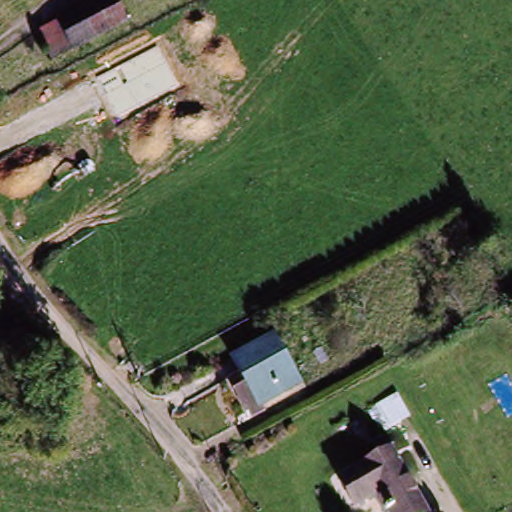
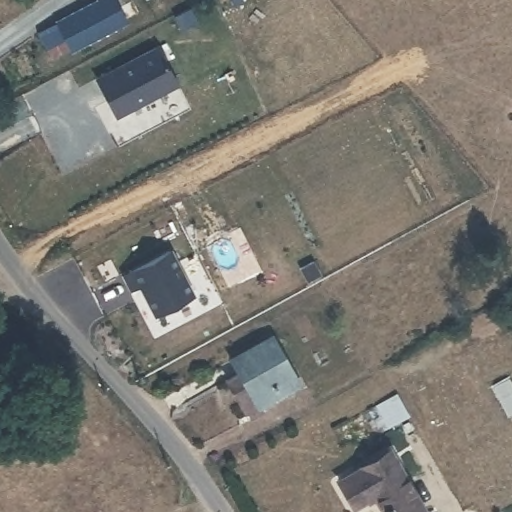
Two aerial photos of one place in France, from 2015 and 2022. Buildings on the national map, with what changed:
unchanged [(30,34),(53,24),(105,0),(118,31),(67,55),(45,65),(30,34)]
new [(178,83),(116,117),(94,77),(157,44),(178,83)]
new [(171,251),(193,295),(155,314),(141,285),(132,290),(124,275),(171,251)]
unchanged [(254,422),(250,414),(233,382),(246,375),(241,364),(281,343),(304,385),(263,407),(267,415),(254,422)]
unchanged [(397,454),(433,512),(396,512),(388,499),(364,512),(358,512),(343,487),(397,454)]

